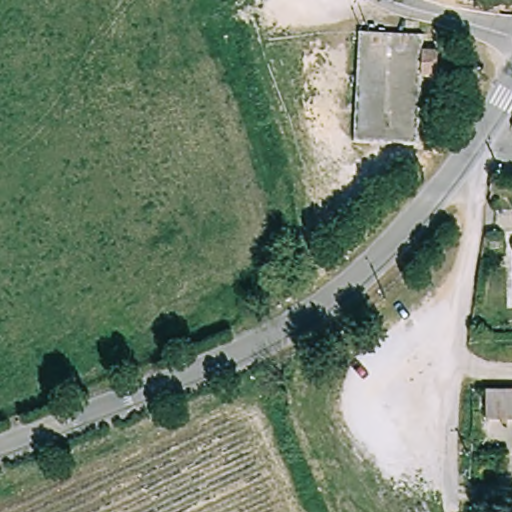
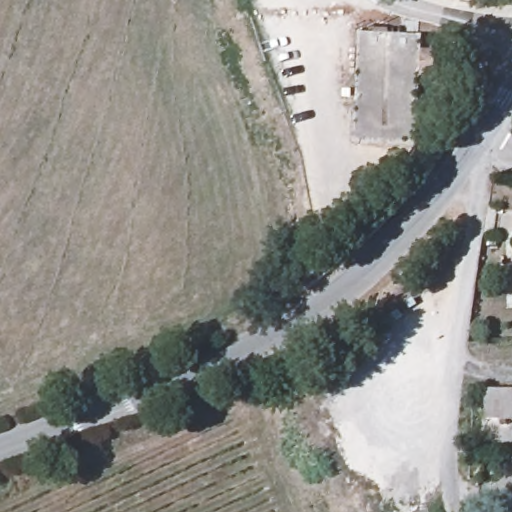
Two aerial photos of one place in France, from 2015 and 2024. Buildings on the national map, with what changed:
unchanged [(446,50),(446,75),(430,75),(430,49),(446,50)]
unchanged [(512,213),(512,232),(508,232),(508,214),(512,213)]
unchanged [(489,421),(489,390),(512,389),(512,421),(489,421)]

